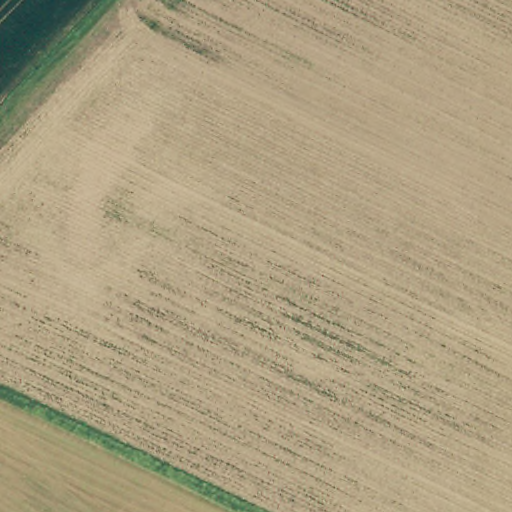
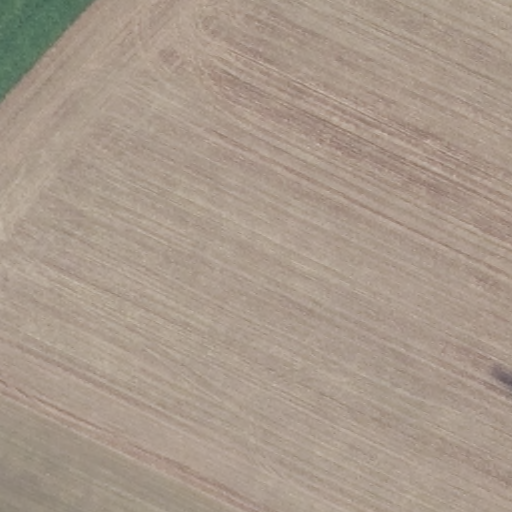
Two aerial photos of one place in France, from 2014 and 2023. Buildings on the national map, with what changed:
[]

